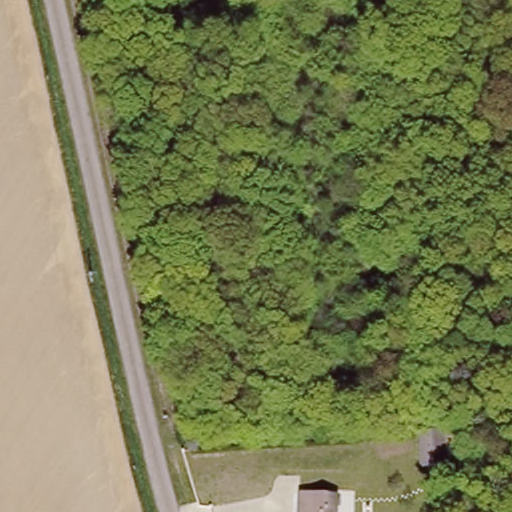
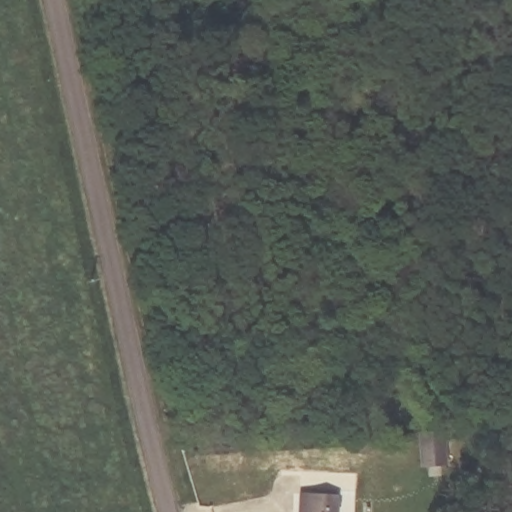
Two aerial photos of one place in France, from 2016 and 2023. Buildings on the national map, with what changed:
unchanged [(418,471),(416,436),(432,435),(441,434),(443,469),(418,471)]
unchanged [(303,493),(343,494),(342,512),(302,512),(302,511),(303,493)]

